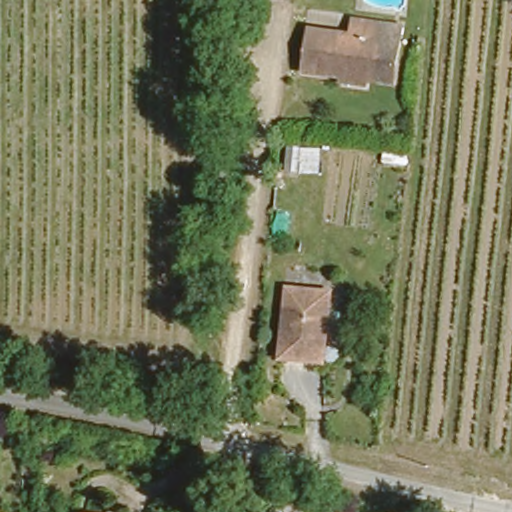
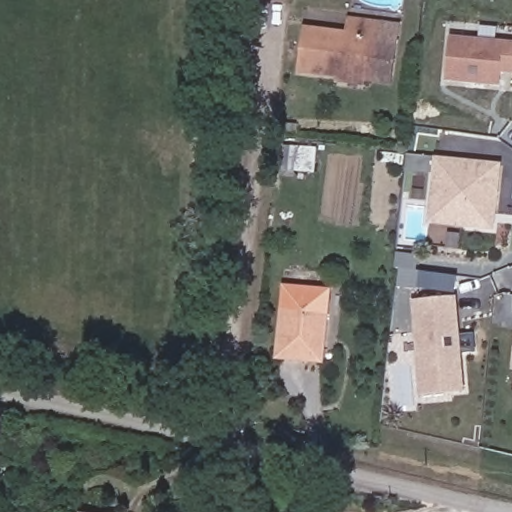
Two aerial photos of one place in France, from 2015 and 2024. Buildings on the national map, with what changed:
unchanged [(378,89),(352,88),(354,77),(313,72),(316,30),(352,33),(353,22),(387,26),(397,27),(397,38),(396,71),(395,81),(380,80),(378,89)]
new [(500,85),(446,80),(450,37),(512,42),(512,74),(502,73),(500,85)]
new [(427,200),(431,158),(496,164),(490,227),(457,225),(426,222),(427,200)]
unchanged [(285,291),(329,295),(326,358),(281,356),(285,291)]
new [(463,389),(422,394),(412,301),(453,296),(463,389)]
new [(512,358),(512,366),(511,366),(512,358)]
unchanged [(114,512),(80,512),(81,506),(114,512)]

